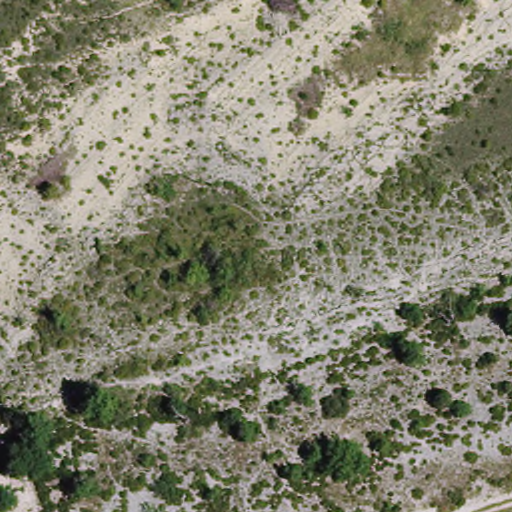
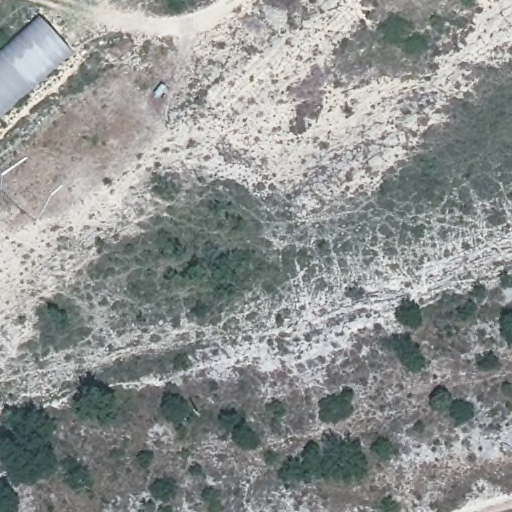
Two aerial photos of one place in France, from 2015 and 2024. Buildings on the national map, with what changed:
new [(0,115),(0,49),(39,14),(72,51),(0,115)]

